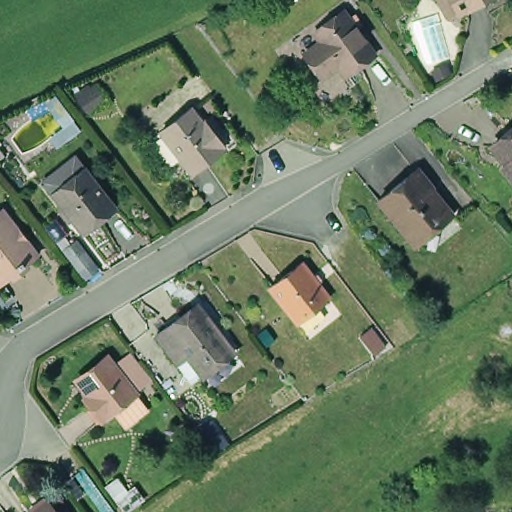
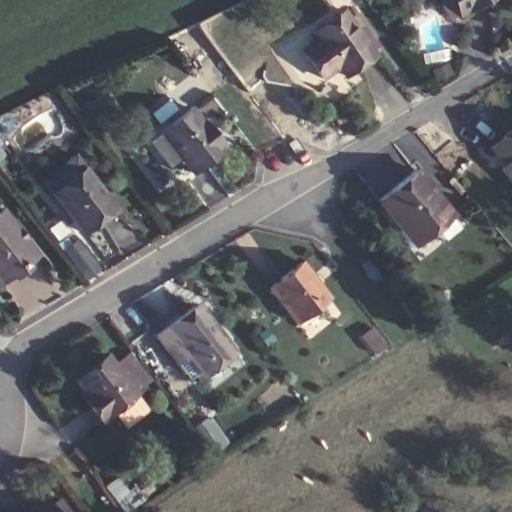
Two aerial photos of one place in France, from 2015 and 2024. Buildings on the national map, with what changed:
unchanged [(455,0),(486,0),(471,8),(470,7),(466,9),(461,11),(455,0)]
unchanged [(364,48),(335,69),(329,60),(313,72),(294,46),(309,36),(306,30),(303,26),(319,15),(333,5),(364,48)]
unchanged [(446,68),(431,73),(428,64),(443,59),(446,68)]
unchanged [(218,146),(216,148),(217,150),(188,173),(156,134),(187,109),(198,122),(199,121),(218,146)]
unchanged [(502,169),(495,161),(499,158),(487,141),(512,121),(512,182),(502,169)]
unchanged [(89,239),(58,199),(50,188),(81,164),(90,175),(121,215),(89,239)]
unchanged [(414,247),(378,203),(413,173),(450,217),(414,247)]
unchanged [(0,285),(0,215),(29,254),(13,266),(18,274),(0,286),(0,285)]
unchanged [(323,304),(291,328),(264,292),(295,268),(323,304)]
unchanged [(153,334),(161,327),(191,304),(212,331),(214,330),(226,345),(195,369),(176,344),(167,352),(153,334)]
unchanged [(88,397),(81,387),(112,363),(116,369),(129,359),(148,383),(136,393),(138,396),(101,422),(91,410),(83,401),(88,397)]
unchanged [(27,512),(41,501),(50,512),(27,512)]

